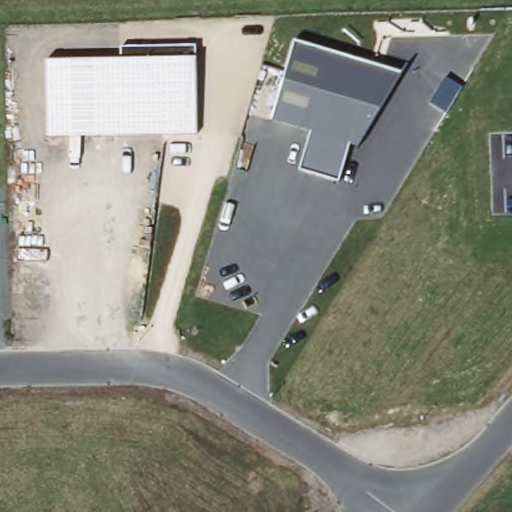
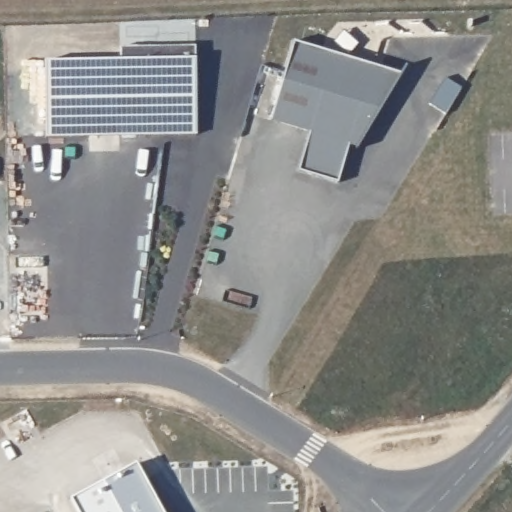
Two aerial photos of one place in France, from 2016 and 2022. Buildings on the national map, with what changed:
unchanged [(358,149),(349,145),(337,184),(298,172),(309,133),(269,120),(294,42),(402,75),(358,149)]
unchanged [(122,62),(122,47),(196,47),(198,135),(48,138),(46,61),(122,62)]
new [(445,77),(463,88),(446,114),(429,104),(445,77)]
new [(164,512),(78,512),(71,499),(137,463),(164,512)]

